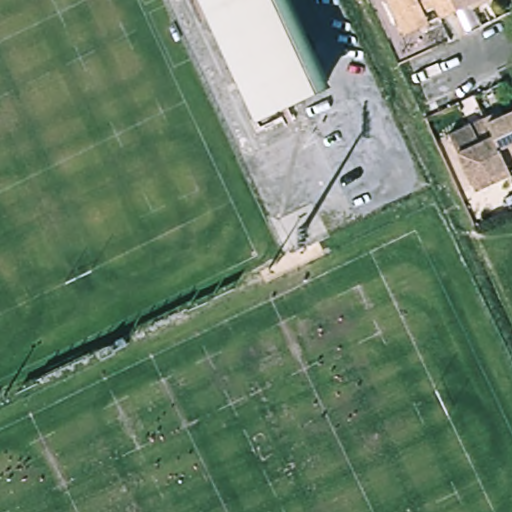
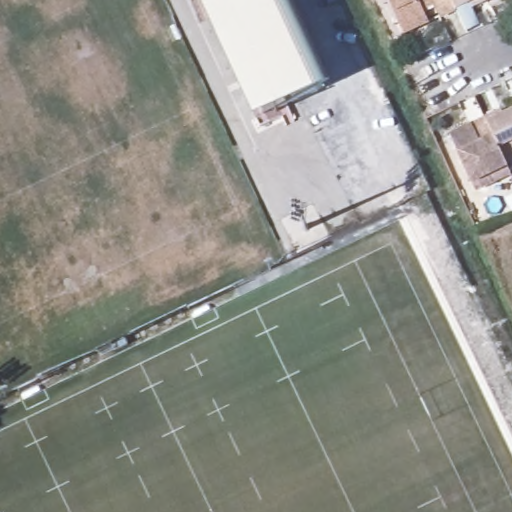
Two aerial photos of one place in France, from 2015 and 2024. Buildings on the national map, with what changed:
unchanged [(258,122),(199,0),(289,0),(331,87),(258,122)]
unchanged [(440,14),(434,1),(423,6),(429,18),(403,30),(389,0),(453,0),(456,6),(440,14)]
unchanged [(470,0),(456,6),(453,0),(470,0)]
unchanged [(512,108),(512,156),(500,162),(481,121),(512,108)]
unchanged [(506,175),(469,192),(443,134),(479,117),(480,118),(481,121),(500,162),(506,175)]

